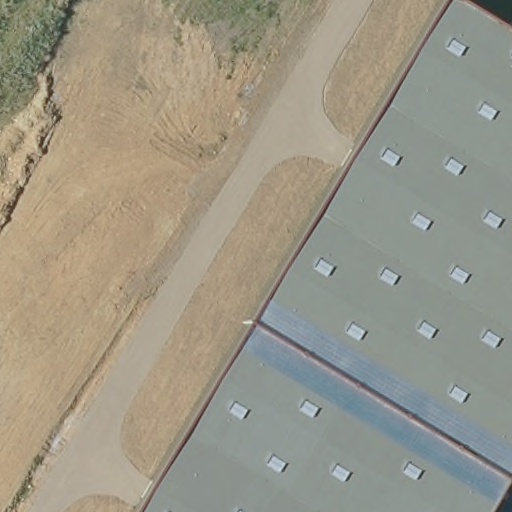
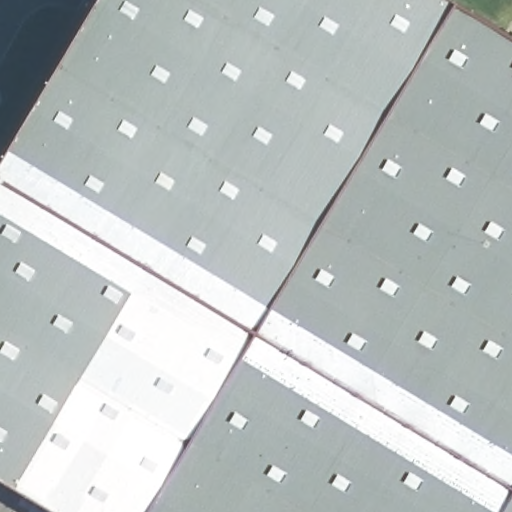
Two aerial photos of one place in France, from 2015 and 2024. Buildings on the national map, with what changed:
new [(0,178),(0,164),(97,0),(443,0),(245,323),(0,178)]
unchanged [(245,323),(443,0),(451,0),(512,37),(512,512),(132,512),(245,323)]
new [(245,323),(132,512),(54,512),(0,480),(0,179),(245,323)]

